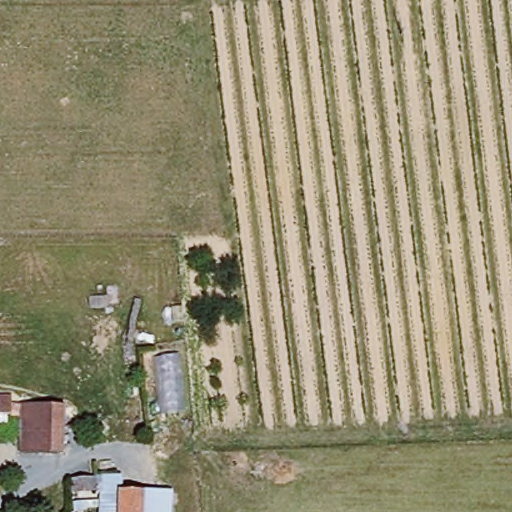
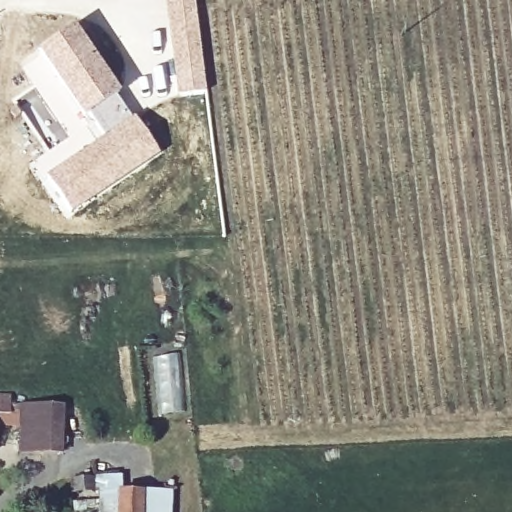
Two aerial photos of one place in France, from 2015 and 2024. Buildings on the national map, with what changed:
new [(179,95),(170,36),(166,0),(196,0),(207,91),(179,95)]
new [(100,132),(96,134),(89,126),(85,129),(84,126),(63,140),(59,134),(56,126),(20,65),(37,52),(76,24),(122,93),(119,96),(132,115),(160,153),(72,216),(45,176),(99,137),(101,135),(100,132)]
unchanged [(10,397),(10,415),(0,415),(0,397),(10,397)]
unchanged [(22,452),(22,408),(62,408),(62,425),(62,452),(22,452)]
unchanged [(120,492),(121,512),(96,512),(95,489),(73,490),(73,476),(95,475),(120,475),(120,492)]
unchanged [(120,492),(169,491),(169,512),(121,512),(120,492)]

